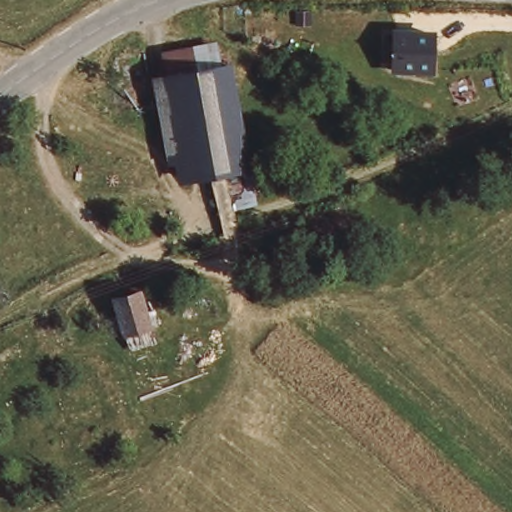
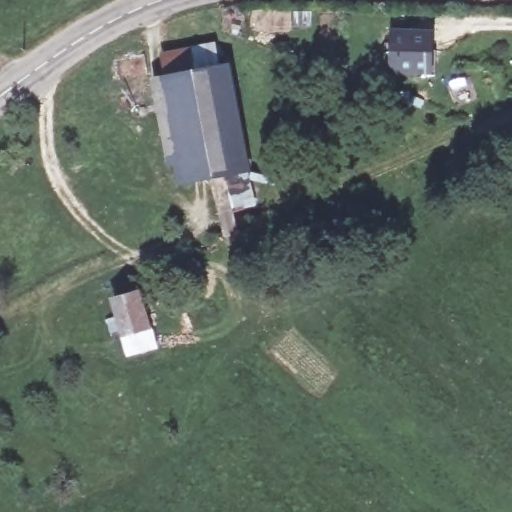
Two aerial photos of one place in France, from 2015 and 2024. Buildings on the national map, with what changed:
unchanged [(434,41),(432,80),(395,76),(397,39),(434,41)]
unchanged [(165,49),(228,41),(232,64),(168,71),(165,49)]
unchanged [(232,64),(244,160),(181,169),(168,71),(232,64)]
unchanged [(244,160),(247,180),(233,184),(245,238),(224,241),(212,186),(184,188),(181,169),(244,160)]
unchanged [(148,291),(159,330),(130,336),(122,300),(148,291)]

